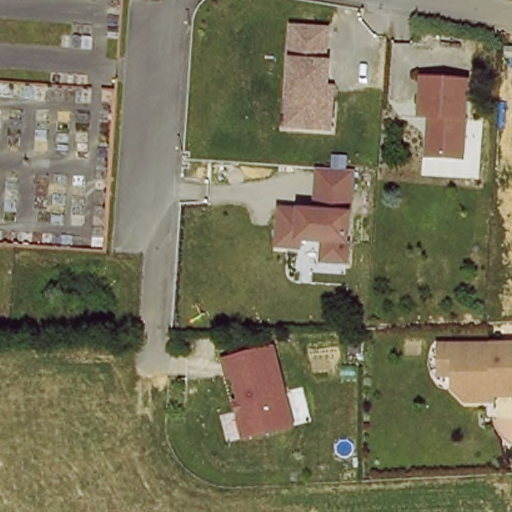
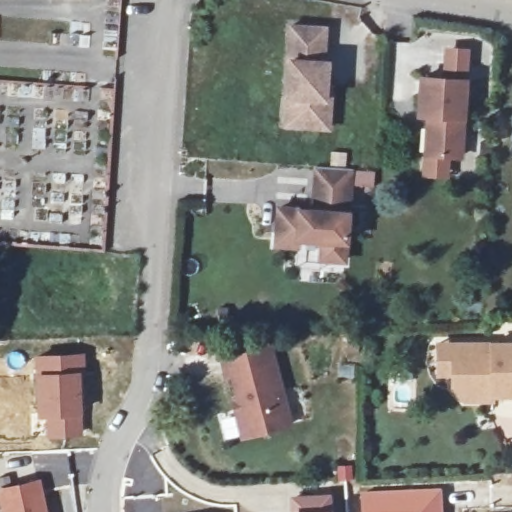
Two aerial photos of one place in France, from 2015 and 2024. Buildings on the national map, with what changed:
unchanged [(320,28),(319,57),(326,57),(322,125),(289,125),(290,99),(283,99),(284,59),(288,26),(320,28)]
unchanged [(426,157),(429,118),(419,118),(421,99),(422,81),(466,84),(465,102),(461,159),(426,157)]
unchanged [(326,206),(327,193),(309,192),(312,160),(346,163),(341,231),(339,254),(316,253),(317,233),(293,231),(292,239),(271,237),(271,230),(273,202),(326,206)]
unchanged [(483,398),(465,398),(452,387),(452,373),(437,373),(437,343),(464,343),(512,343),(512,393),(483,393),(483,398)]
unchanged [(232,399),(237,398),(230,372),(226,373),(222,357),(269,345),(289,422),(246,433),(241,434),(232,399)]
new [(85,351),(85,368),(82,368),(83,436),(45,438),(45,416),(37,417),(34,353),(85,351)]
new [(49,512),(2,512),(0,502),(0,488),(42,478),(49,512)]
new [(442,512),(360,512),(360,490),(441,487),(442,512)]
new [(333,494),(333,510),(333,512),(292,512),(291,494),(333,494)]

